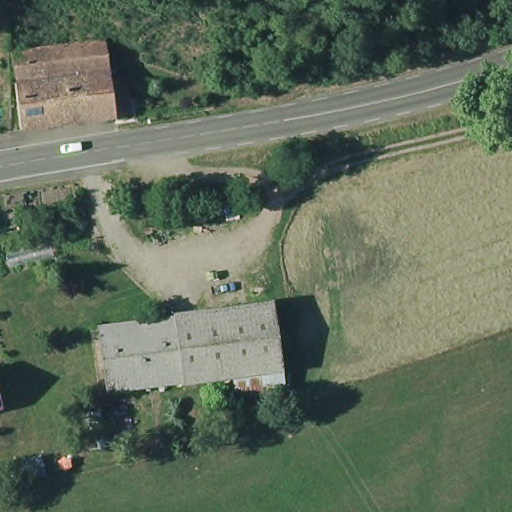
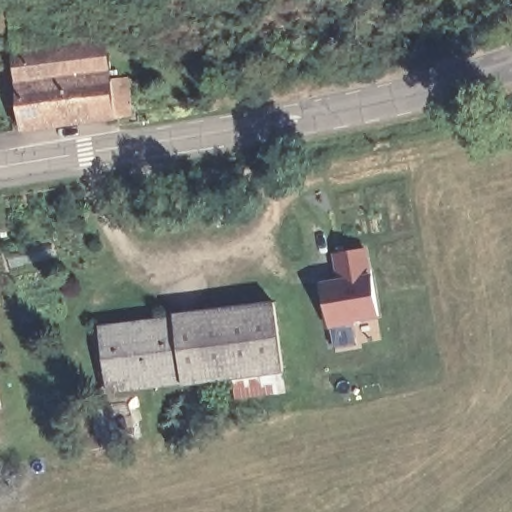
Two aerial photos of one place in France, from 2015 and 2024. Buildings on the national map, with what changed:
unchanged [(111,35),(120,119),(23,126),(13,45),(111,35)]
new [(371,274),(379,317),(354,323),(354,327),(329,331),(320,282),(336,279),(332,253),(367,247),(371,274)]
unchanged [(238,392),(236,374),(188,383),(186,376),(176,321),(174,313),(276,297),(288,365),(261,370),(264,387),(238,392)]
unchanged [(176,321),(186,376),(111,388),(103,332),(176,321)]

